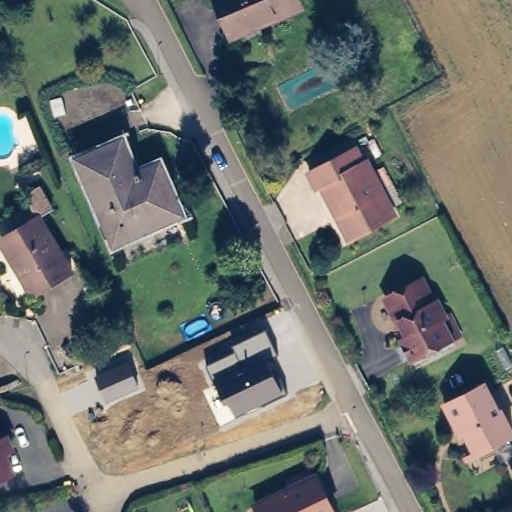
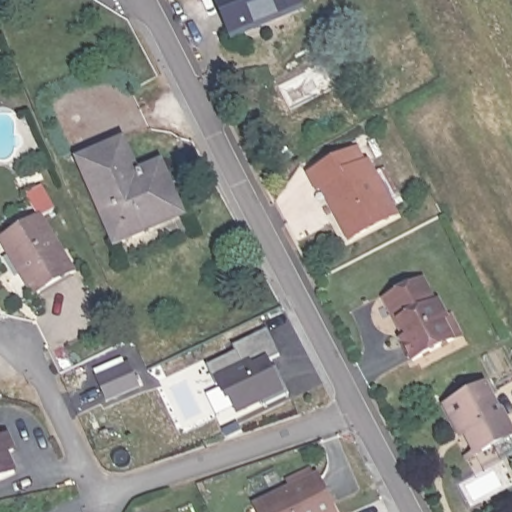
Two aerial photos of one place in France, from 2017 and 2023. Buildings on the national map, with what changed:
unchanged [(223,0),(301,0),(304,9),(278,19),(237,35),(235,29),(223,0)]
unchanged [(154,225),(110,244),(73,159),(118,140),(132,173),(155,164),(164,184),(177,215),(154,225)]
unchanged [(328,182),(323,184),(315,168),(362,144),(370,160),(373,158),(400,210),(360,232),(355,234),(328,182)]
unchanged [(41,222),(28,202),(41,193),(54,214),(41,222)]
unchanged [(7,242),(41,222),(73,277),(33,300),(22,280),(0,245),(7,242)]
unchanged [(418,277),(430,298),(432,296),(441,312),(443,311),(455,330),(407,356),(395,335),(402,332),(393,316),(391,317),(380,297),(418,277)]
unchanged [(266,330),(277,356),(270,359),(285,395),(263,407),(262,404),(237,418),(229,403),(225,404),(207,366),(235,353),(232,346),(266,330)]
unchanged [(128,362),(139,389),(105,404),(93,377),(128,362)]
unchanged [(502,407),(505,406),(512,420),(512,433),(497,442),(494,437),(476,446),(461,417),(457,419),(448,402),(489,381),(502,407)]
unchanged [(2,437),(7,449),(1,454),(10,473),(0,477),(0,437),(2,437)]
unchanged [(260,500),(322,471),(340,511),(338,512),(266,512),(260,500)]

